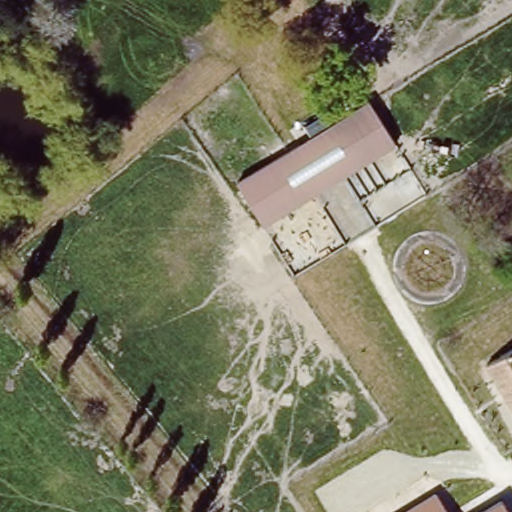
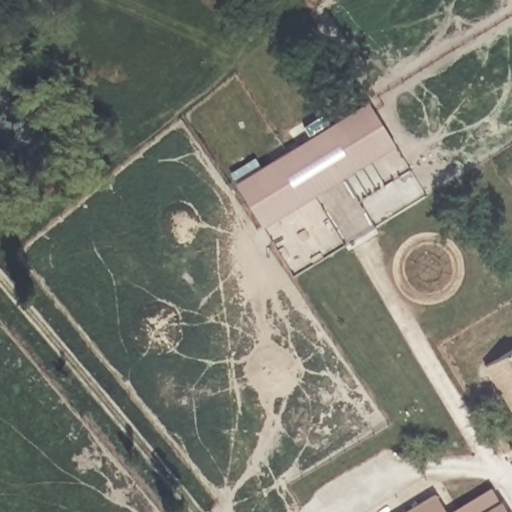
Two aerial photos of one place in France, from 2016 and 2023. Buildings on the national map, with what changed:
unchanged [(396,146),(264,227),(236,182),(310,137),(304,127),(324,116),(330,125),(369,101),(396,146)]
unchanged [(487,362),(512,346),(512,404),(487,362)]
unchanged [(437,492),(449,512),(400,512),(437,492)]
unchanged [(509,512),(477,512),(501,498),(509,512)]

